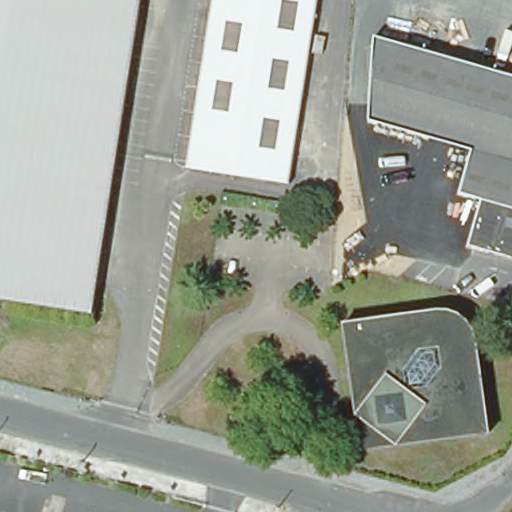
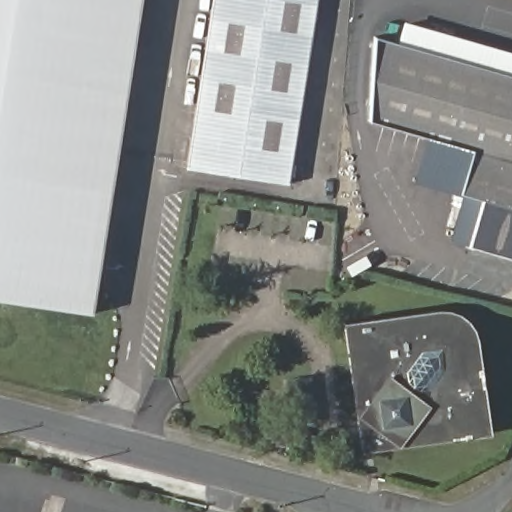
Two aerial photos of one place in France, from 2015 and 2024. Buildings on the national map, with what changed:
unchanged [(142,0),(91,313),(0,299),(0,0),(142,0)]
unchanged [(324,0),(291,194),(186,175),(217,0),(324,0)]
unchanged [(373,39),(512,83),(512,271),(462,255),(477,211),(450,203),(465,160),(366,126),(373,39)]
new [(465,160),(453,193),(413,182),(423,146),(465,160)]
unchanged [(347,329),(447,317),(470,342),(487,435),(365,451),(347,329)]

